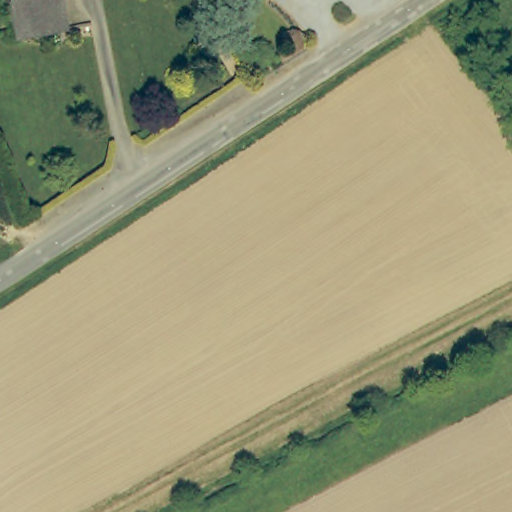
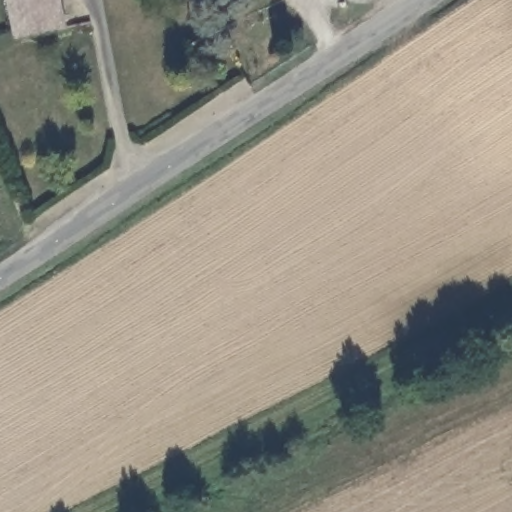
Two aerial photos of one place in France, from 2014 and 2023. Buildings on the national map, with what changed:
unchanged [(67,31),(14,40),(7,0),(61,0),(67,31)]

